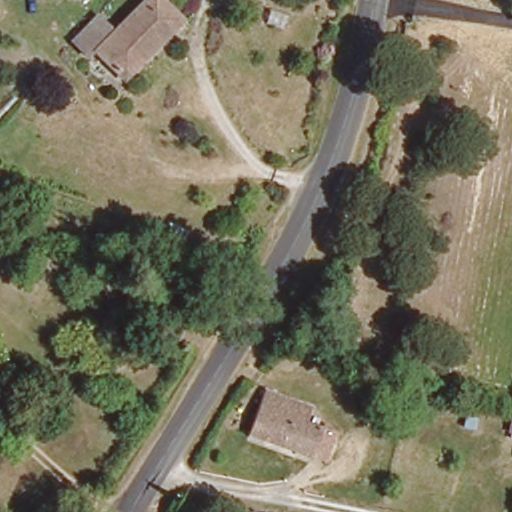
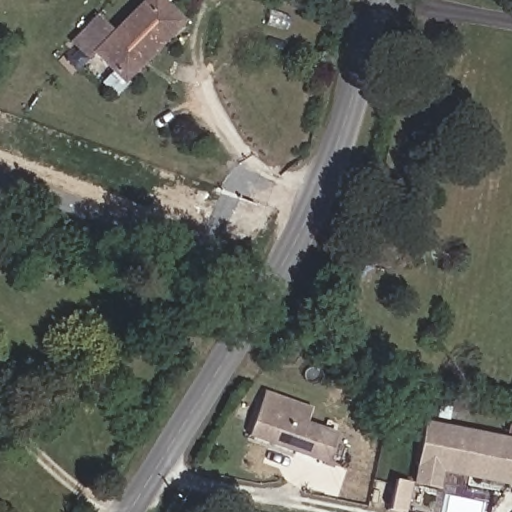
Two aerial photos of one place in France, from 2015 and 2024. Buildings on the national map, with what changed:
unchanged [(91,49),(137,0),(161,0),(176,15),(123,78),(91,49)]
unchanged [(313,453),(295,447),(246,431),(263,382),(310,395),(308,402),(328,409),(313,453)]
new [(426,423),(512,440),(512,471),(509,484),(441,470),(438,487),(415,483),(426,423)]

